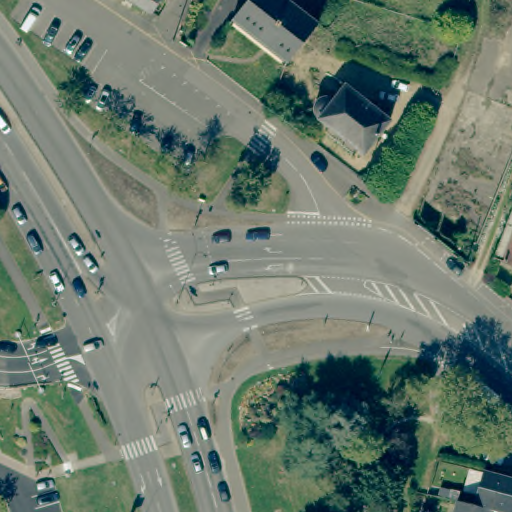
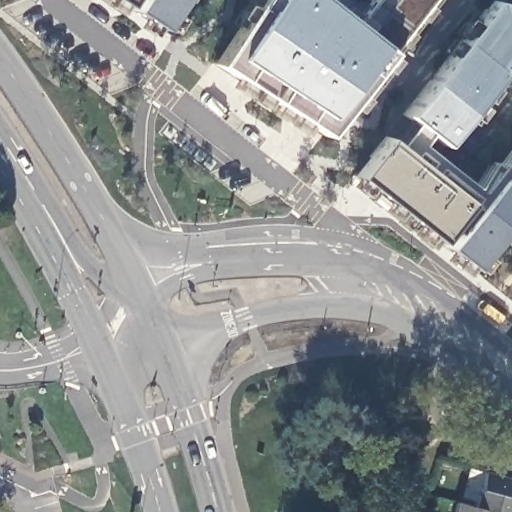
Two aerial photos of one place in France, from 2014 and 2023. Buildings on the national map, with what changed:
new [(162,29),(117,0),(180,0),(162,29)]
demolished [(150,12),(132,0),(158,0),(150,12)]
new [(389,52),(323,135),(214,64),(256,0),(321,0),(354,26),(373,0),(429,0),(389,52)]
demolished [(241,0),(282,0),(313,23),(284,60),(228,17),(241,0)]
new [(443,145),(430,134),(411,155),(474,206),(512,160),(512,219),(474,268),(354,175),(386,136),(396,145),(415,125),(404,116),(494,0),(512,0),(512,55),(443,145)]
demolished [(315,113),(313,106),(314,101),(319,96),(327,95),(332,98),(345,83),(390,119),(363,152),(315,113)]
demolished [(493,256),(512,211),(512,264),(493,256)]
unchanged [(512,498),(512,512),(497,512),(491,510),(473,506),(483,470),(512,478),(512,496),(512,498)]
unchanged [(473,506),(491,510),(490,512),(452,512),(455,501),(473,506)]

